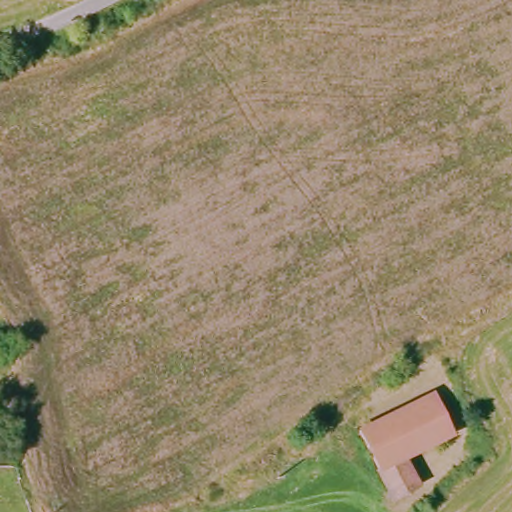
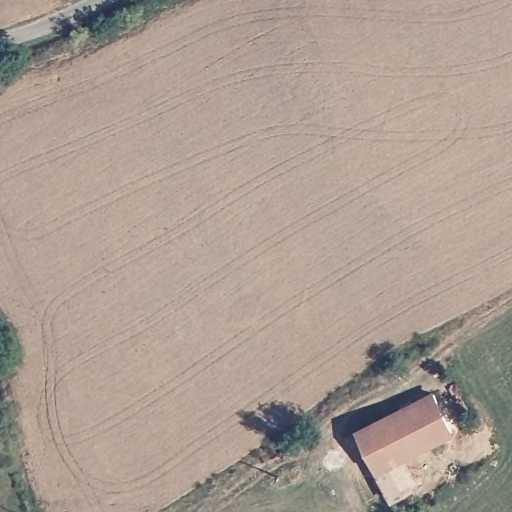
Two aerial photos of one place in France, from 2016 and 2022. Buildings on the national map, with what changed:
unchanged [(428,392),(447,432),(396,457),(376,419),(428,392)]
unchanged [(396,457),(415,484),(391,497),(355,429),(376,419),(396,457)]

